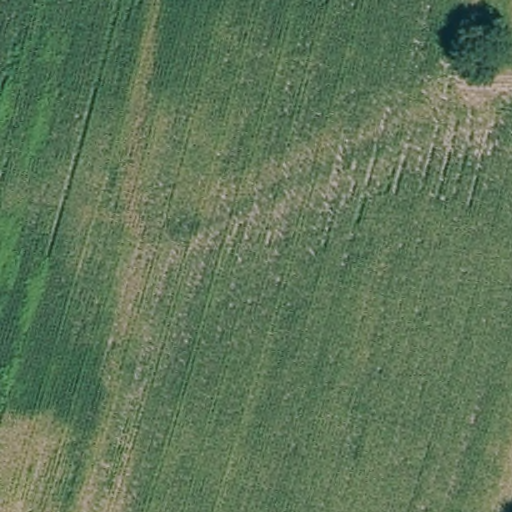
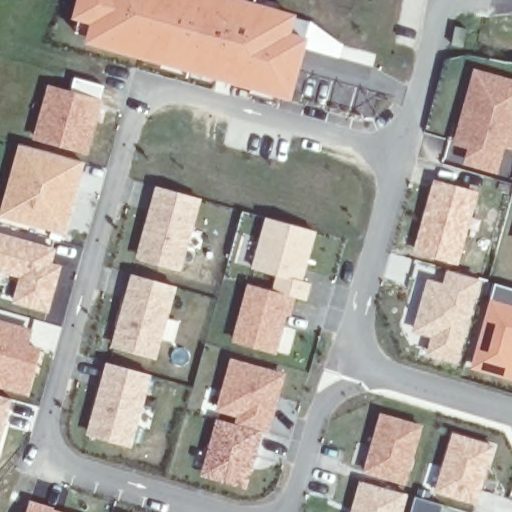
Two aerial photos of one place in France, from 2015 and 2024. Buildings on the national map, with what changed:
new [(290,94),(76,34),(85,0),(237,0),(310,21),(290,94)]
new [(454,43),(457,25),(468,27),(465,46),(454,43)]
new [(461,141),(465,129),(462,127),(478,72),(512,81),(512,110),(495,167),(470,160),(474,144),(461,141)]
new [(65,92),(66,88),(71,89),(75,77),(105,85),(85,151),(36,137),(50,87),(65,92)]
new [(9,192),(22,142),(84,159),(64,229),(17,216),(3,211),(9,192)]
new [(465,190),(466,186),(476,189),(456,262),(417,252),(436,182),(465,190)]
new [(201,198),(181,272),(136,260),(156,185),(201,198)]
new [(317,232),(304,280),(312,282),(306,302),(292,297),(293,294),(273,288),(276,275),(251,267),(266,216),(317,232)]
new [(56,247),(52,263),(61,266),(49,313),(12,303),(20,277),(0,272),(0,232),(56,247)]
new [(445,287),(449,271),(477,279),(455,361),(430,354),(435,335),(416,330),(430,282),(445,287)]
new [(177,287),(156,360),(110,347),(132,274),(177,287)]
new [(293,294),(289,311),(285,310),(275,348),(235,337),(251,282),(293,294)]
new [(512,377),(475,367),(498,285),(512,288),(512,377)]
new [(30,328),(26,343),(39,347),(27,389),(0,382),(0,319),(30,328)]
new [(237,422),(240,412),(220,407),(233,360),(282,373),(266,431),(237,422)]
new [(151,374),(131,447),(85,437),(107,362),(151,374)]
new [(12,385),(0,432),(0,382),(12,385)]
new [(220,407),(240,412),(237,422),(200,412),(207,385),(225,390),(220,407)]
new [(422,425),(406,485),(363,473),(380,413),(422,425)]
new [(245,487),(202,476),(219,417),(237,422),(260,428),(245,487)]
new [(454,433),(492,445),(475,501),(437,488),(454,433)]
new [(405,493),(399,512),(355,512),(363,482),(405,493)]
new [(415,495),(442,502),(439,512),(410,512),(415,495)]
new [(45,505),(45,507),(61,512),(25,512),(29,500),(45,505)]

